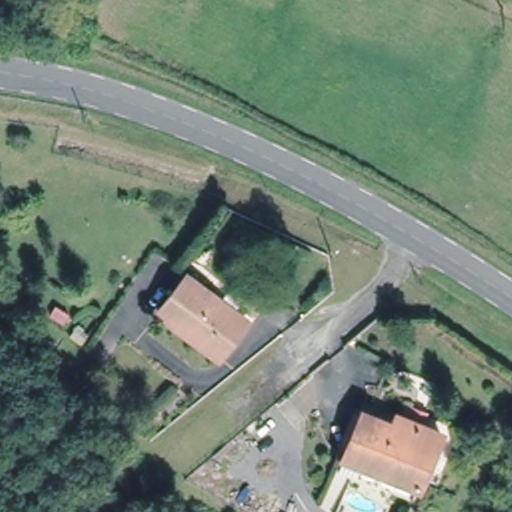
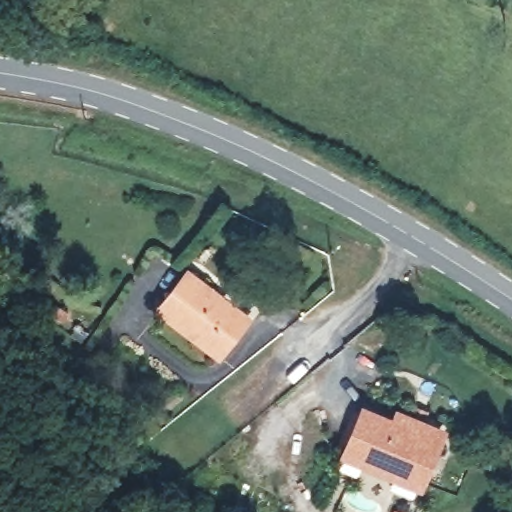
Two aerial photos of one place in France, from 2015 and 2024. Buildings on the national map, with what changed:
unchanged [(190,275),(248,320),(220,359),(160,315),(190,275)]
unchanged [(422,482),(362,458),(356,470),(337,462),(362,402),(393,415),(397,406),(445,425),(422,482)]

